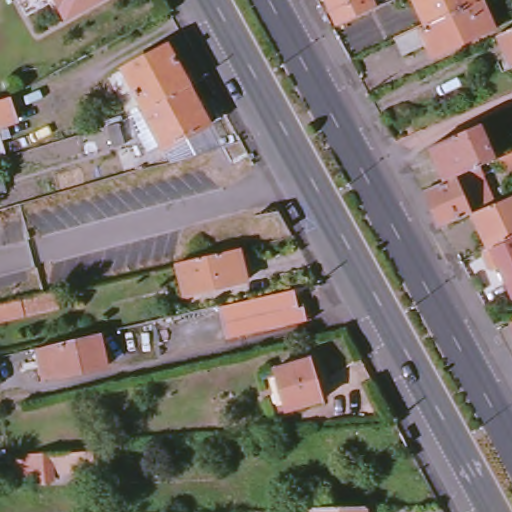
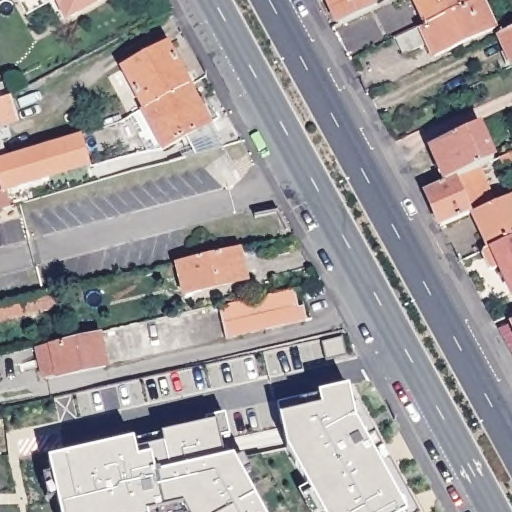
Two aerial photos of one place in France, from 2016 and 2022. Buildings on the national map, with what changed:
unchanged [(60,1),(33,16),(24,0),(101,0),(69,18),(60,1)]
unchanged [(339,25),(327,0),(372,0),(376,8),(339,25)]
unchanged [(392,0),(394,0),(392,1),(392,0)]
unchanged [(428,40),(404,51),(397,39),(425,25),(477,1),(480,0),(484,0),(497,29),(435,56),(428,40)]
unchanged [(477,0),(477,1),(425,25),(413,0),(477,0)]
unchanged [(499,34),(512,28),(512,64),(499,34)]
unchanged [(122,59),(165,35),(188,76),(144,100),(122,59)]
unchanged [(142,101),(144,100),(188,76),(209,116),(162,140),(159,135),(147,142),(129,109),(142,101)]
unchanged [(12,134),(2,137),(10,158),(0,161),(0,99),(11,95),(20,119),(9,122),(12,134)]
unchanged [(170,154),(169,153),(162,140),(209,116),(222,137),(222,139),(170,154)]
unchanged [(102,129),(115,125),(120,144),(107,148),(102,129)]
unchanged [(480,165),(447,179),(441,181),(427,148),(447,139),(475,126),(489,160),(480,165)]
unchanged [(480,165),(496,202),(467,215),(465,215),(447,179),(480,165)]
unchanged [(420,190),(441,181),(447,179),(465,215),(439,227),(420,190)]
unchanged [(487,248),(483,250),(467,215),(496,202),(512,195),(512,236),(487,248)]
unchanged [(509,298),(495,268),(489,270),(484,270),(478,257),(481,251),(483,250),(487,248),(512,236),(512,297),(509,298)]
unchanged [(187,295),(180,263),(197,259),(239,250),(245,281),(187,295)]
unchanged [(57,305),(0,319),(0,305),(17,300),(55,291),(57,305)]
unchanged [(305,306),(309,322),(228,341),(222,311),(260,302),(295,293),(297,308),(305,306)]
unchanged [(495,330),(508,325),(512,323),(512,359),(495,330)]
unchanged [(30,349),(34,348),(44,345),(105,331),(112,363),(52,378),(39,381),(30,349)]
demolished [(319,400),(282,410),(271,368),(307,358),(319,400)]
new [(287,450),(280,417),(279,405),(319,396),(350,390),(350,399),(416,512),(321,512),(287,450)]
new [(234,460),(255,499),(262,512),(187,512),(183,505),(156,512),(60,512),(49,461),(133,442),(215,425),(220,442),(227,460),(234,460)]
demolished [(94,450),(94,481),(48,485),(47,479),(1,481),(0,457),(94,450)]
demolished [(311,510),(364,508),(364,512),(311,512),(311,510)]

